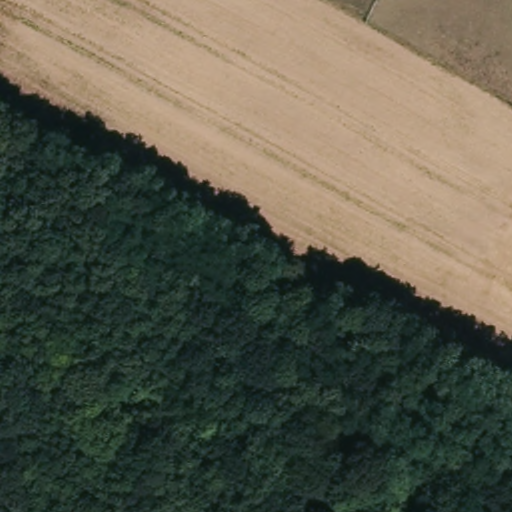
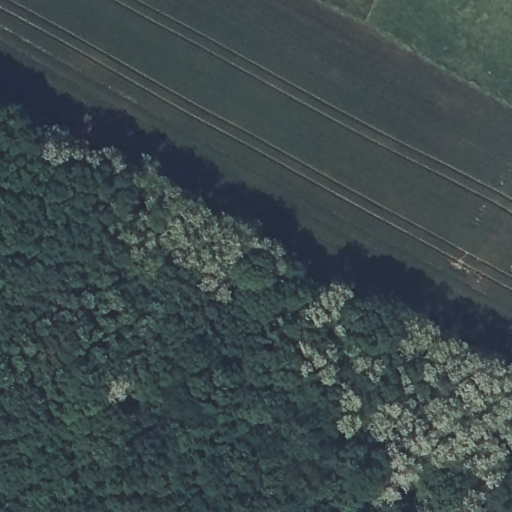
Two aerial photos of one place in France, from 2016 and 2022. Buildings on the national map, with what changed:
[]

